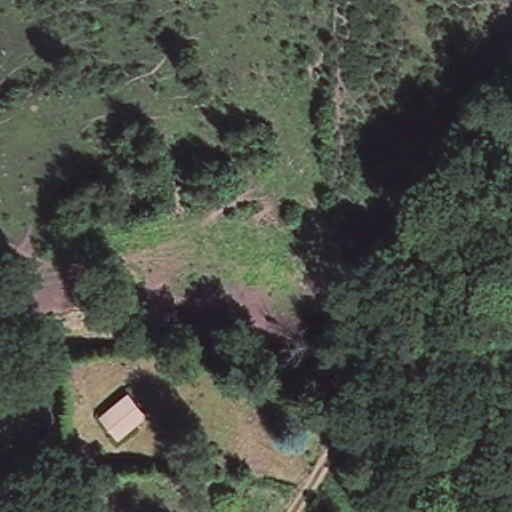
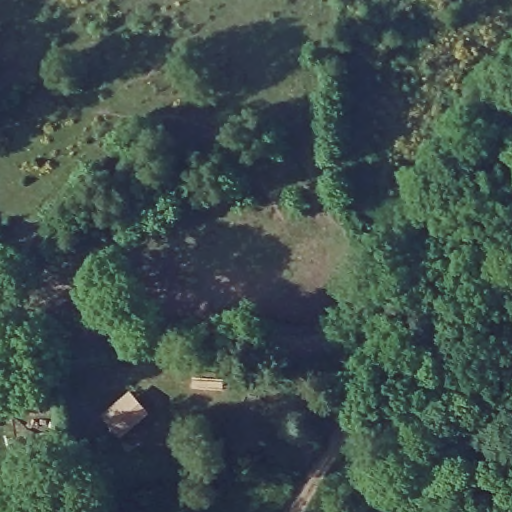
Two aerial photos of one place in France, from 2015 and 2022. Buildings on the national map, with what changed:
unchanged [(145,412),(117,435),(100,417),(129,393),(145,412)]

